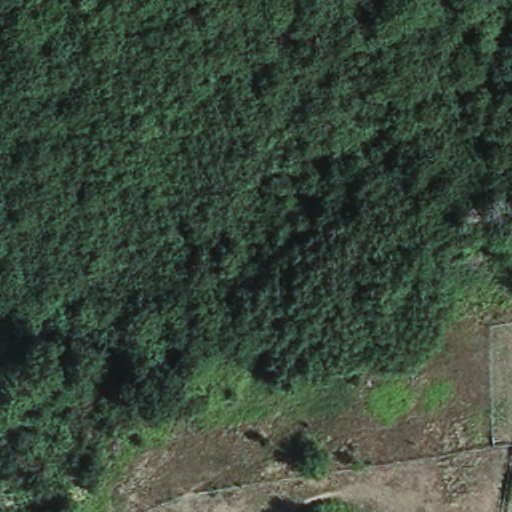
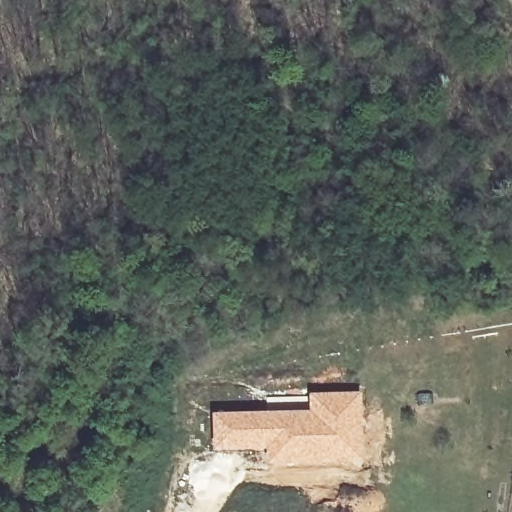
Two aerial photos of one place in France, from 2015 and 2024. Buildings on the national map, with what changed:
new [(308,409),(307,393),(362,391),(363,466),(265,465),(264,450),(212,450),(210,413),(308,409)]

